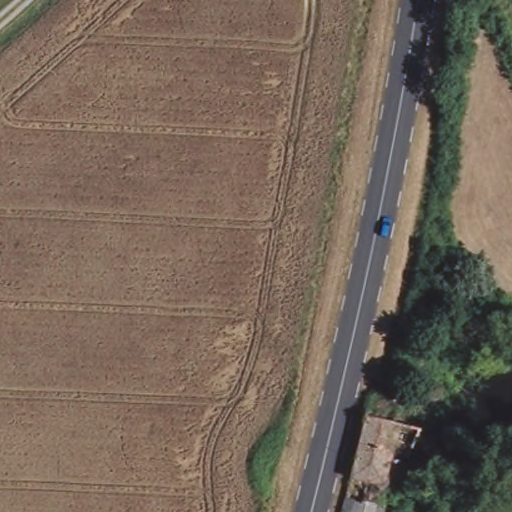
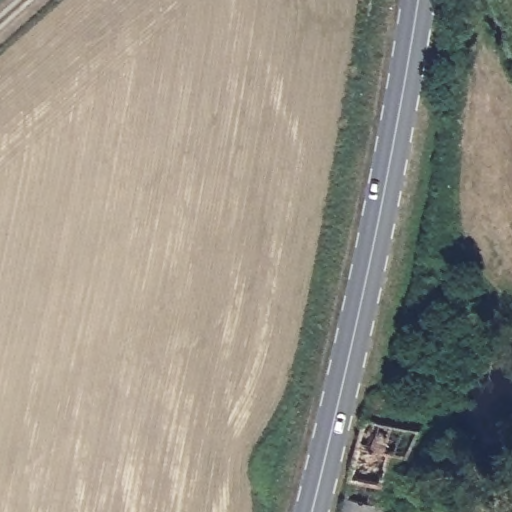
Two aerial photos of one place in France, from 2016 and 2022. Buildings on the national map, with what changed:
unchanged [(397,437),(422,444),(412,479),(396,476),(387,512),(380,512),(346,501),(367,412),(401,421),(397,437)]
unchanged [(380,512),(344,512),(346,501),(380,512)]

